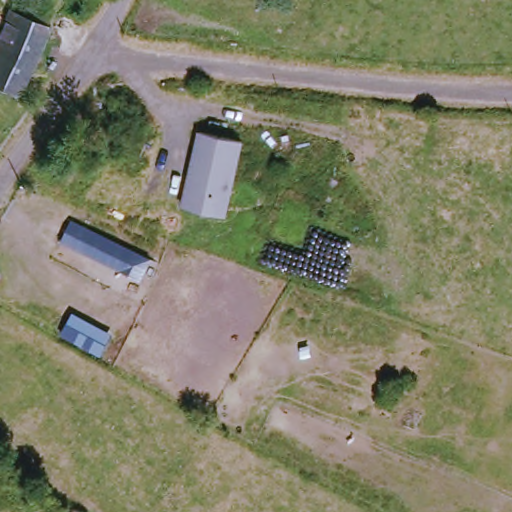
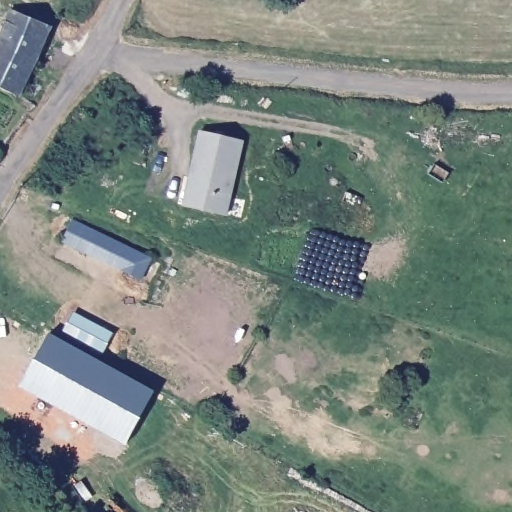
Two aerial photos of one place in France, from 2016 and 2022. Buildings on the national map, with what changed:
unchanged [(0,85),(0,40),(14,11),(52,24),(20,94),(0,85)]
unchanged [(225,217),(186,210),(191,179),(187,179),(195,133),(238,140),(225,217)]
unchanged [(148,258),(139,279),(59,242),(70,220),(148,258)]
unchanged [(71,310),(113,330),(100,355),(58,333),(71,310)]
new [(48,333),(154,392),(125,446),(19,388),(48,333)]

